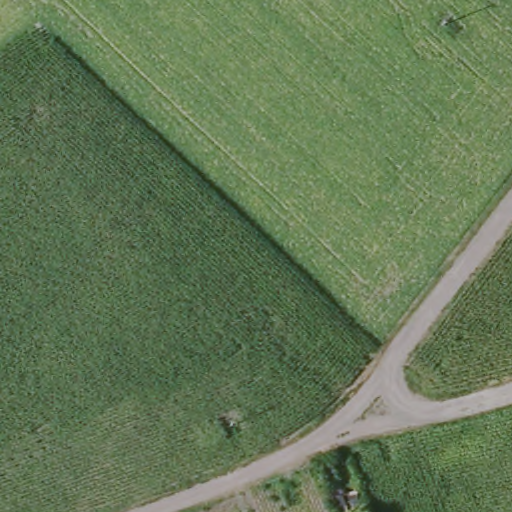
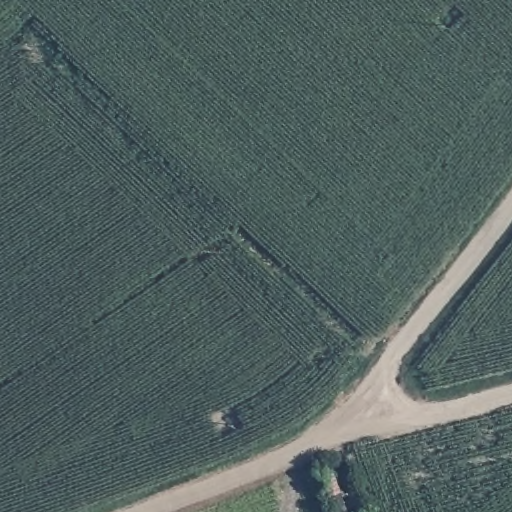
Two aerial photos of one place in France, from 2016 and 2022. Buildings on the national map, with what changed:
unchanged [(330,471),(336,492),(328,495),(321,473),(330,471)]

